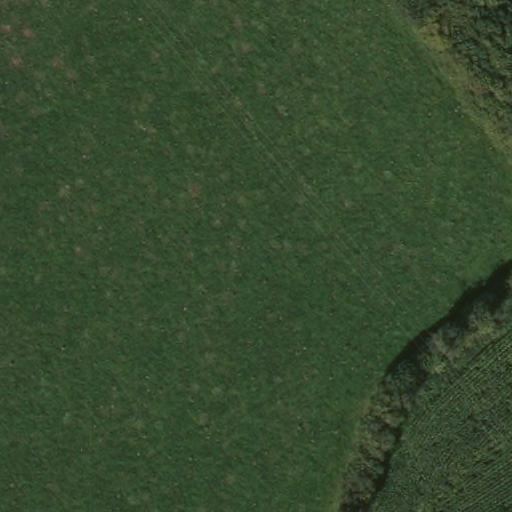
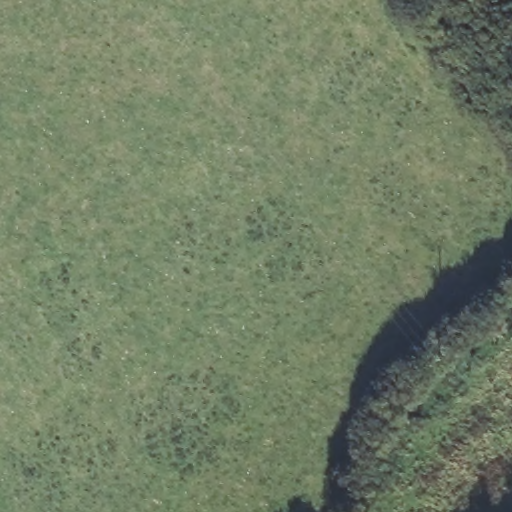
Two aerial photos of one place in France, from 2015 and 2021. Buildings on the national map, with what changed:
[]

